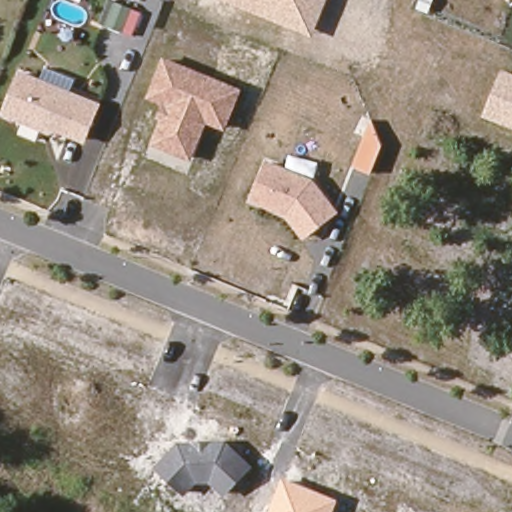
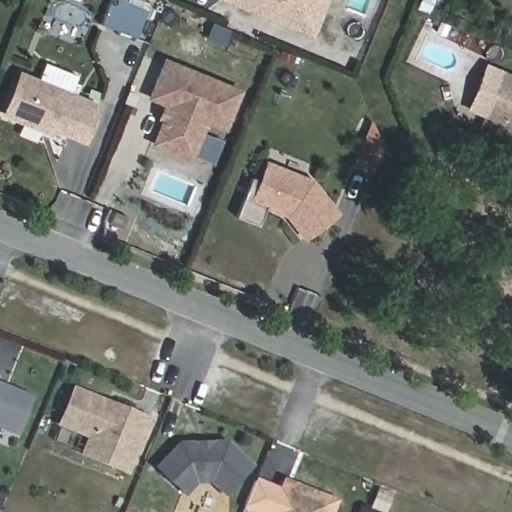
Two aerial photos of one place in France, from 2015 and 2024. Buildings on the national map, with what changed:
unchanged [(142,41),(99,25),(109,0),(112,0),(152,15),(142,41)]
unchanged [(221,0),(329,0),(313,38),(221,0)]
unchanged [(244,89),(227,131),(207,124),(192,161),(151,145),(160,121),(155,118),(160,105),(146,100),(162,58),(244,89)]
unchanged [(512,76),(512,129),(466,110),(485,66),(512,76)]
unchanged [(102,104),(86,141),(62,131),(49,135),(0,116),(19,71),(102,104)]
new [(363,139),(378,146),(367,173),(352,166),(363,139)]
unchanged [(313,179),(341,213),(306,241),(287,216),(249,202),(263,160),(313,179)]
new [(0,430),(0,382),(34,396),(16,436),(0,430)]
new [(58,426),(73,386),(152,419),(128,475),(79,456),(86,437),(58,426)]
unchanged [(252,466),(224,497),(209,483),(195,484),(185,496),(154,468),(179,442),(226,440),(252,466)]
unchanged [(333,512),(269,512),(282,478),(338,500),(333,512)]

